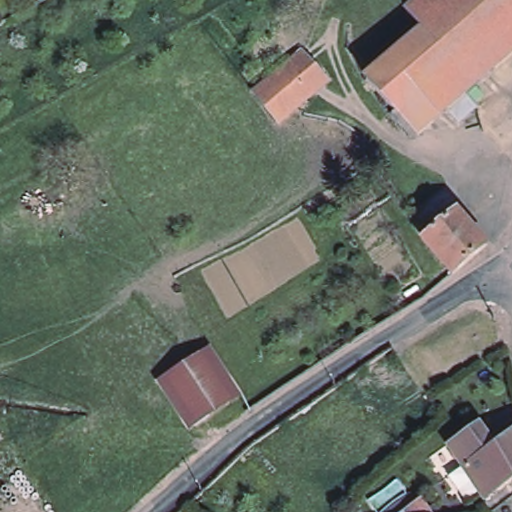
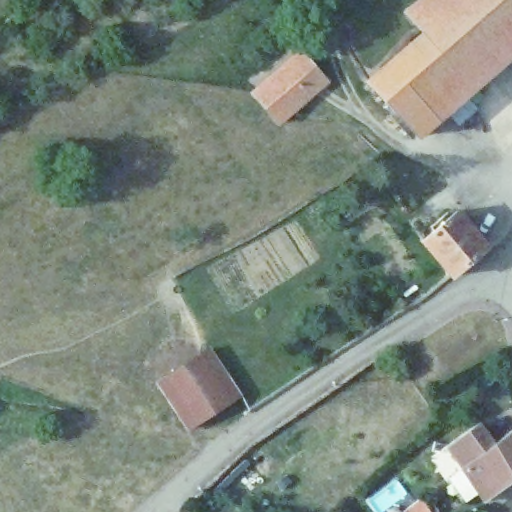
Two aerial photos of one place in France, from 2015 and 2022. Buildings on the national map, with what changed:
unchanged [(389,104),(364,77),(422,27),(405,7),(414,0),(512,0),(512,47),(462,90),(473,103),(455,119),(444,106),(414,131),(401,117),(397,121),(385,108),(389,104)]
unchanged [(325,82),(278,123),(252,94),(299,52),(325,82)]
unchanged [(489,245),(455,275),(426,241),(460,212),(489,245)]
unchanged [(203,354),(211,349),(241,395),(236,398),(190,428),(160,382),(203,354)]
unchanged [(482,424),(496,444),(512,432),(512,483),(489,501),(482,491),(468,501),(452,477),(466,467),(451,447),(482,424)]
unchanged [(432,510),(437,505),(442,511),(440,512),(406,512),(407,511),(424,499),(432,510)]

